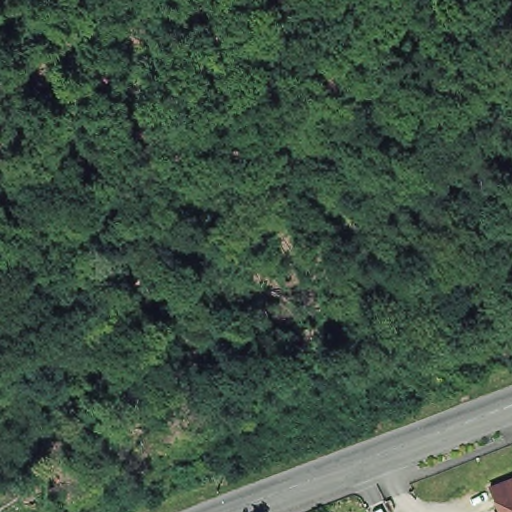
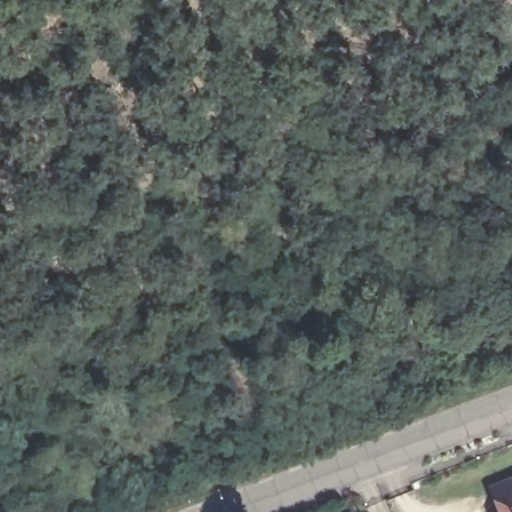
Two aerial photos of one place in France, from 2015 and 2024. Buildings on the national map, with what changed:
unchanged [(512,507),(498,512),(497,512),(485,484),(512,473),(512,507)]
unchanged [(512,507),(512,512),(498,512),(512,507)]

